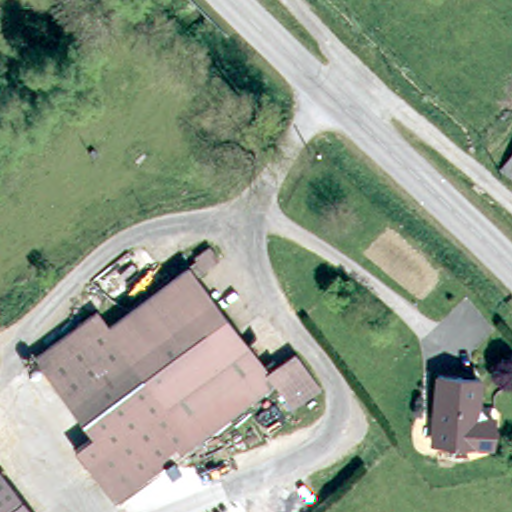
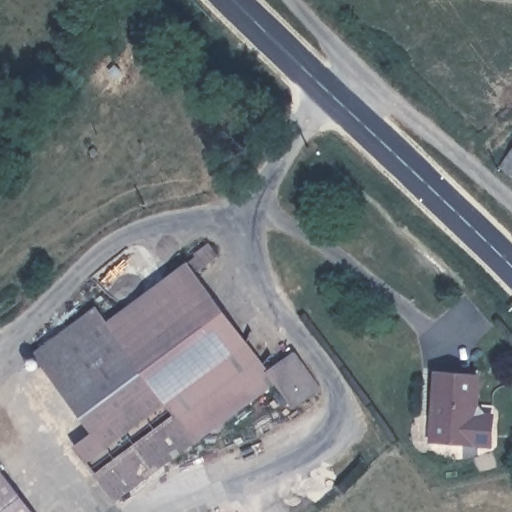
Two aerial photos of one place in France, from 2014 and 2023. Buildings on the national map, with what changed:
unchanged [(512,168),(512,175),(509,172),(512,168)]
unchanged [(40,346),(102,302),(114,316),(197,260),(195,256),(213,243),(224,258),(201,275),(270,373),(296,355),(321,392),(294,410),(277,385),(115,498),(76,441),(97,427),(40,346)]
unchanged [(431,418),(435,373),(476,377),(473,407),(482,416),(490,417),(487,446),(439,441),(429,440),(431,418)]
unchanged [(0,477),(26,512),(0,512),(0,477)]

